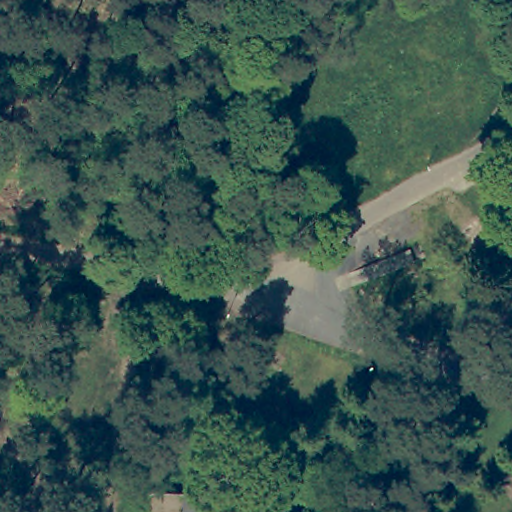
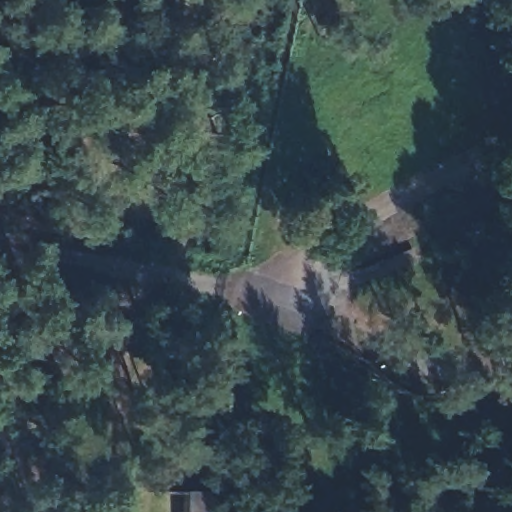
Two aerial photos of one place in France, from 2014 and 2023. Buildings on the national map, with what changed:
unchanged [(159,468),(210,472),(209,487),(157,484),(159,468)]

